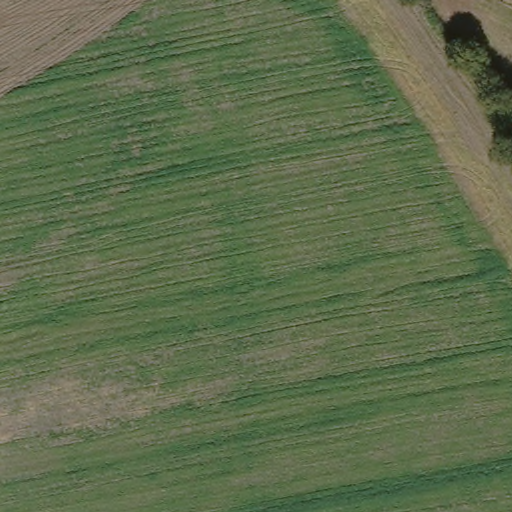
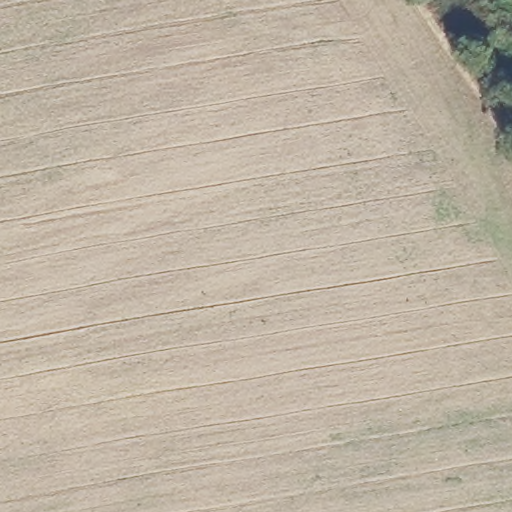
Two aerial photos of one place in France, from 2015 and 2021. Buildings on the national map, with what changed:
[]

